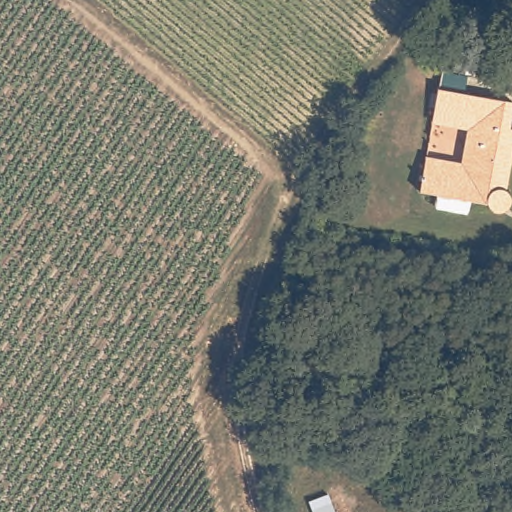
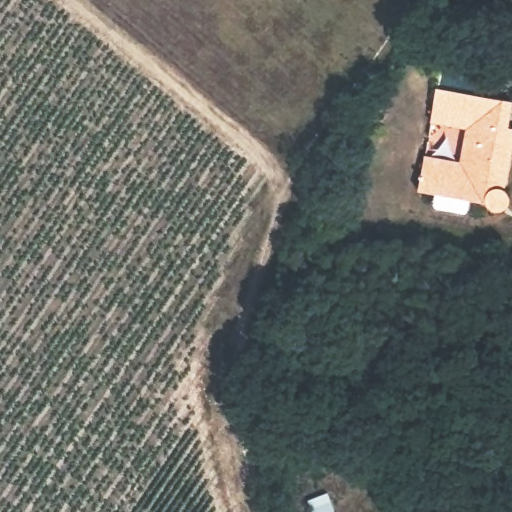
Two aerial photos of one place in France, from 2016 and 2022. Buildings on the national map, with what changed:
unchanged [(512,106),(510,123),(512,123),(512,151),(508,190),(512,192),(512,211),(509,212),(501,211),(496,207),(494,199),(478,197),(477,207),(472,211),(447,209),(443,205),(443,195),(428,193),(430,167),(463,170),(468,120),(434,117),(437,89),(512,95),(512,106)]

